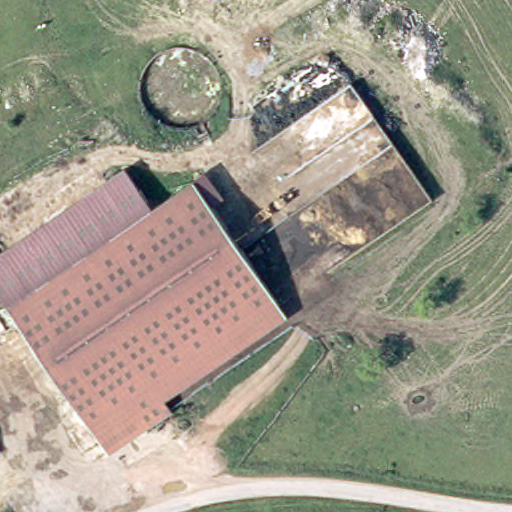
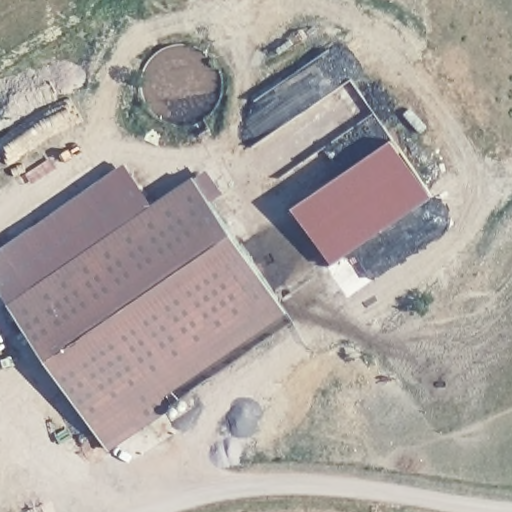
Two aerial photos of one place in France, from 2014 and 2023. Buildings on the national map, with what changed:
new [(432,197),(332,263),(294,206),(394,138),(432,197)]
unchanged [(14,309),(0,289),(0,250),(127,163),(156,211),(14,309)]
unchanged [(113,453),(14,309),(200,181),(285,305),(162,390),(175,411),(113,453)]

